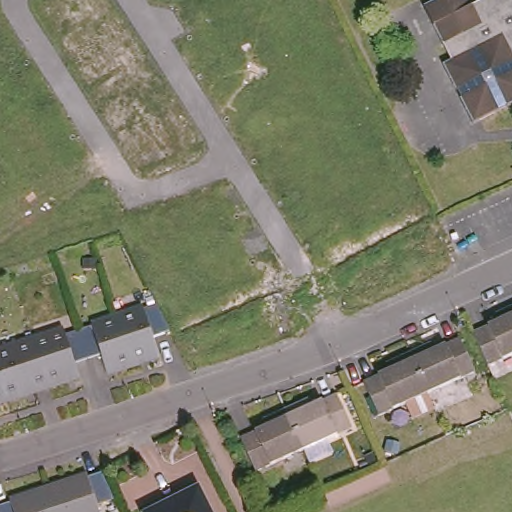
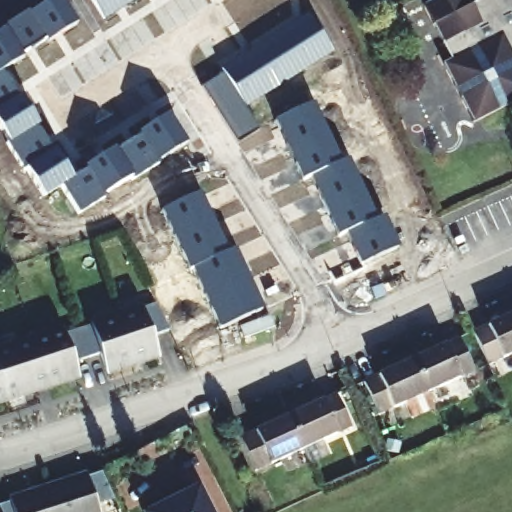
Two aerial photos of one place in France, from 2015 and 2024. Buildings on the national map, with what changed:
new [(159,165),(132,182),(130,179),(103,195),(106,199),(78,216),(61,187),(44,198),(27,171),(24,172),(7,145),(10,143),(0,127),(0,32),(5,29),(4,26),(27,12),(29,15),(51,0),(62,0),(77,24),(47,43),(45,40),(22,54),(24,57),(3,70),(20,96),(19,97),(40,125),(37,128),(51,150),(55,147),(73,178),(85,170),(83,167),(115,148),(116,151),(140,136),(138,133),(169,114),(187,143),(157,162),(159,165)]
new [(91,0),(136,0),(103,21),(91,0)]
unchanged [(468,0),(470,4),(478,0),(512,0),(512,100),(481,116),(472,121),(443,62),(450,57),(423,5),(432,0),(468,0)]
new [(223,76),(219,69),(308,14),(333,54),(245,109),(259,131),(237,144),(202,87),(223,76)]
new [(346,234),(337,237),(310,177),(302,181),(275,122),(313,103),(342,162),(348,159),(377,220),(385,217),(398,248),(359,267),(346,234)]
new [(192,271),(189,272),(161,212),(200,194),(228,253),(234,251),(262,311),(218,331),(192,271)]
unchanged [(117,316),(157,302),(170,330),(154,334),(160,353),(132,362),(117,316)]
unchanged [(470,333),(497,321),(493,312),(512,303),(512,352),(485,365),(470,333)]
unchanged [(108,371),(102,352),(87,357),(77,329),(117,316),(132,362),(108,371)]
unchanged [(76,362),(80,373),(47,385),(33,340),(65,328),(66,333),(77,329),(87,357),(76,362)]
unchanged [(407,351),(428,341),(433,350),(458,338),(472,370),(425,392),(407,351)]
unchanged [(47,385),(6,399),(0,381),(0,351),(33,340),(47,385)]
unchanged [(432,407),(410,416),(403,402),(378,413),(364,382),(387,371),(384,362),(407,351),(425,392),(432,407)]
unchanged [(0,381),(6,399),(0,401),(0,381)]
unchanged [(311,392),(315,401),(339,391),(353,422),(307,442),(288,402),(311,392)]
unchanged [(245,432),(270,422),(267,412),(288,402),(307,442),(260,465),(245,432)]
unchanged [(44,486),(100,467),(113,492),(97,498),(102,512),(52,512),(44,486)]
unchanged [(0,502),(44,486),(52,512),(0,512),(0,502)]
unchanged [(180,495),(196,487),(208,512),(145,512),(180,495)]

